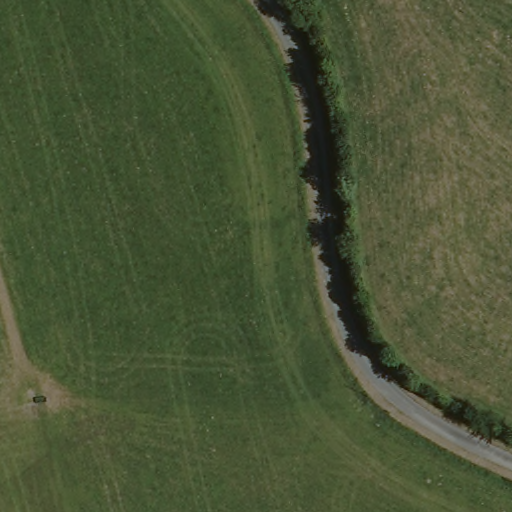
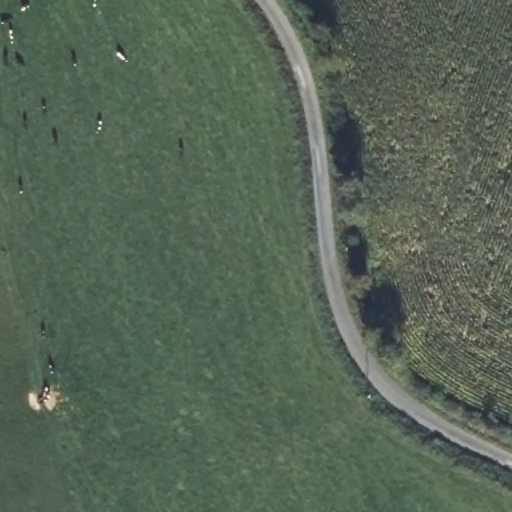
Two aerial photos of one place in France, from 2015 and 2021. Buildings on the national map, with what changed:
[]

